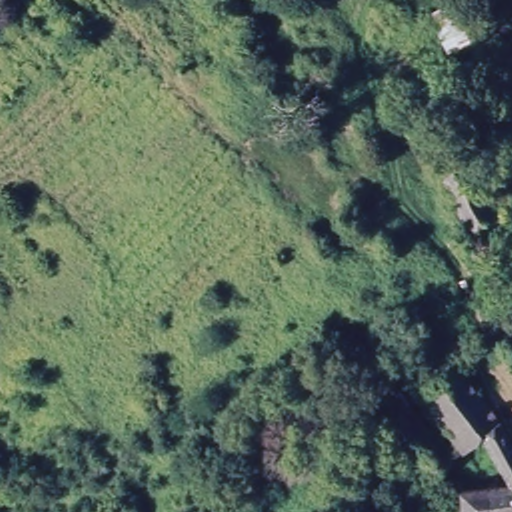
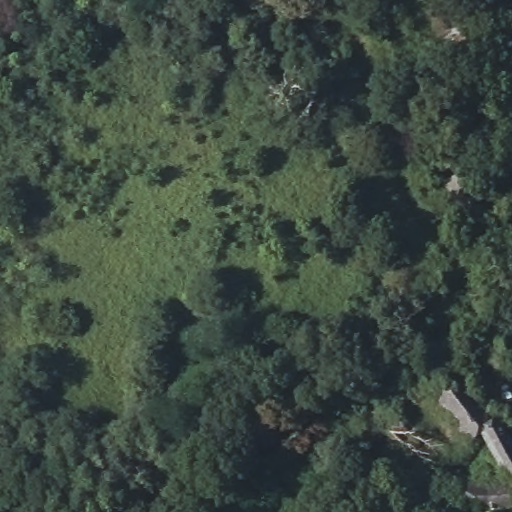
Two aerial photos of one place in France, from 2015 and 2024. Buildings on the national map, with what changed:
unchanged [(480,230),(436,149),(456,135),(495,205),(506,200),(512,208),(480,230)]
unchanged [(467,448),(422,386),(461,356),(511,418),(512,419),(512,483),(488,435),(467,448)]
unchanged [(455,459),(427,478),(384,420),(411,396),(455,459)]
unchanged [(427,478),(448,504),(438,512),(419,512),(407,495),(427,478)]
unchanged [(451,495),(512,483),(512,512),(453,512),(452,501),(451,495)]

